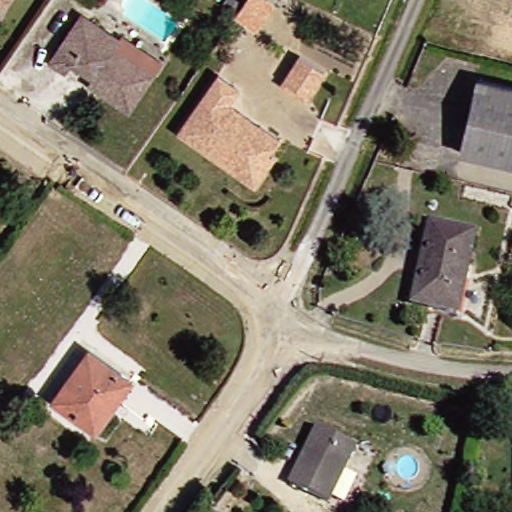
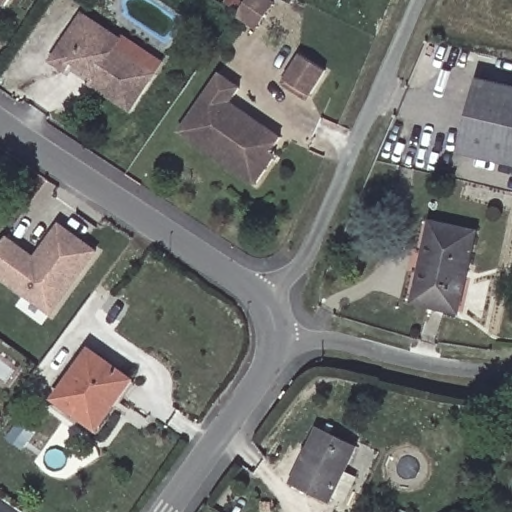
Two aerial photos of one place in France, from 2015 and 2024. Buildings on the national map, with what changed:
unchanged [(0,6),(0,0),(4,0),(0,6)]
unchanged [(246,0),(265,0),(272,5),(256,28),(236,14),(246,0)]
unchanged [(81,72),(66,62),(60,71),(45,61),(77,15),(100,30),(115,39),(110,47),(149,74),(124,110),(85,85),(76,79),(81,72)]
unchanged [(325,71),(310,95),(285,80),(301,55),(325,71)]
unchanged [(251,185),(222,165),(204,152),(191,144),(174,131),(214,74),(234,88),(225,102),(275,137),(265,153),(270,156),(251,185)]
unchanged [(512,89),(512,166),(455,152),(472,80),(512,89)]
unchanged [(453,312),(408,302),(427,221),(471,232),(453,312)]
new [(40,255),(60,227),(96,255),(50,316),(0,279),(0,245),(5,239),(35,261),(40,255)]
unchanged [(90,352),(130,380),(97,427),(56,399),(90,352)]
unchanged [(357,446),(329,504),(290,485),(316,427),(357,446)]

